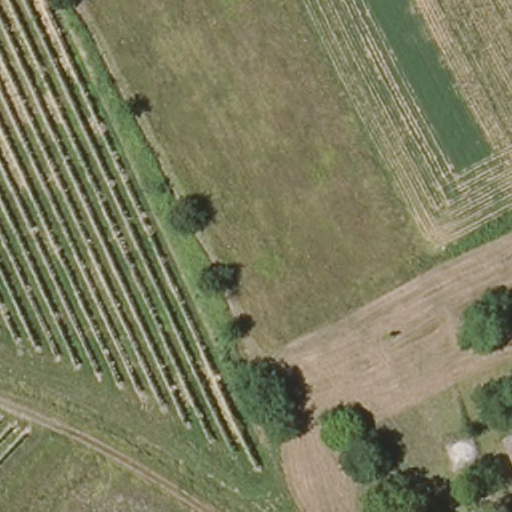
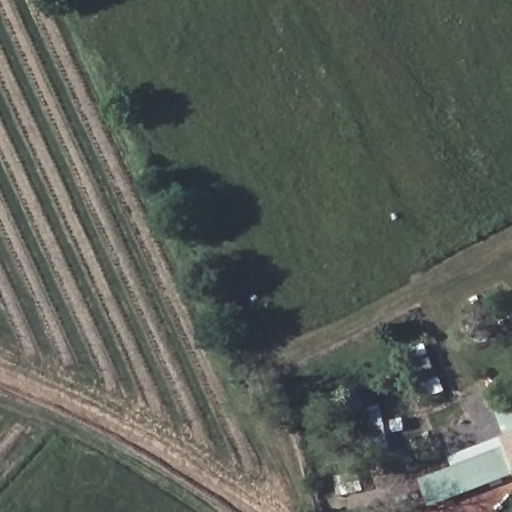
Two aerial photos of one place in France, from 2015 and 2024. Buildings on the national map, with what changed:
new [(429,509),(419,481),(506,448),(512,463),(512,478),(429,509)]

